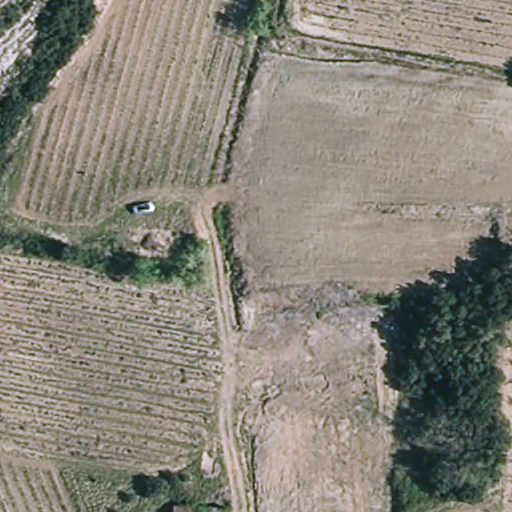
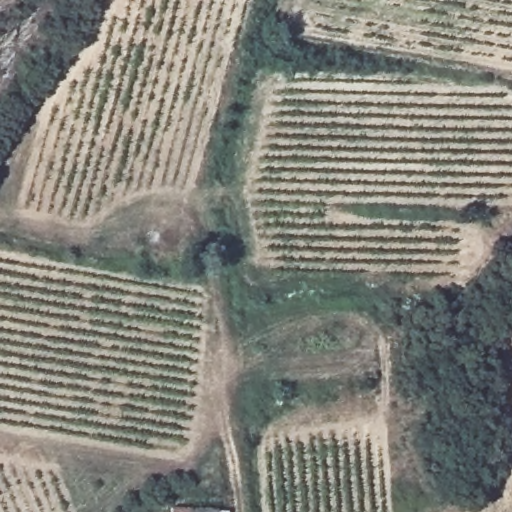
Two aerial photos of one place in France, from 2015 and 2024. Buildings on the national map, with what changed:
unchanged [(166,512),(166,510),(230,497),(232,512),(166,512)]

